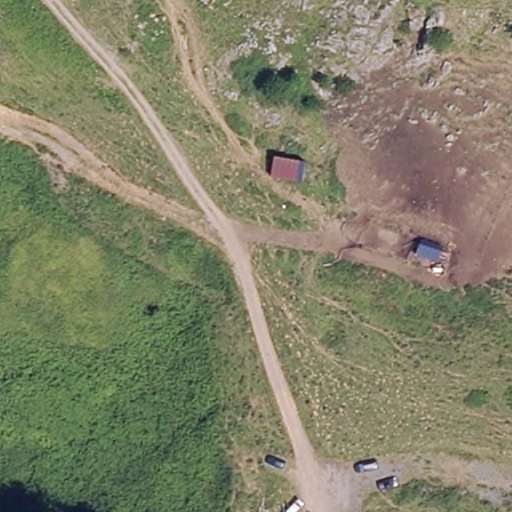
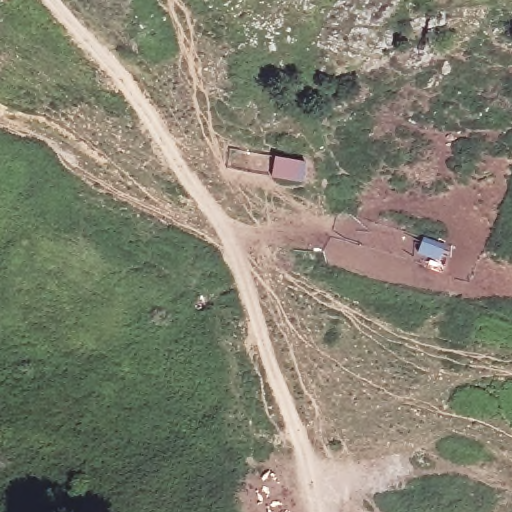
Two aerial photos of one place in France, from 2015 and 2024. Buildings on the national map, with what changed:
unchanged [(309,162),(305,181),(276,177),(278,157),(309,162)]

